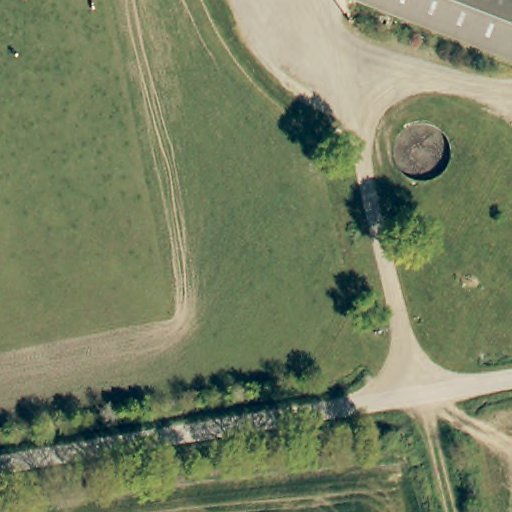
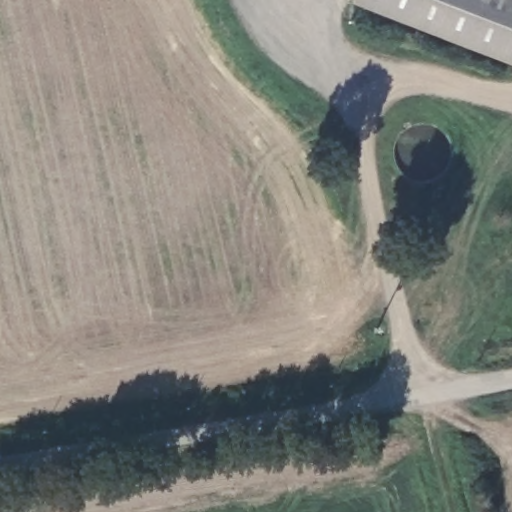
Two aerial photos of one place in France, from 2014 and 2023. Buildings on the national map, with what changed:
unchanged [(512,0),(512,62),(361,0),(512,0)]

